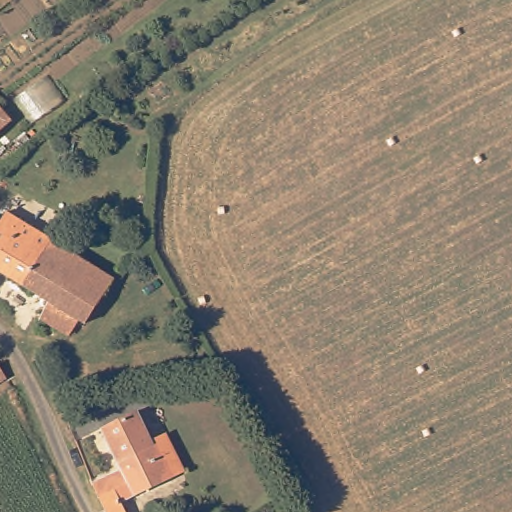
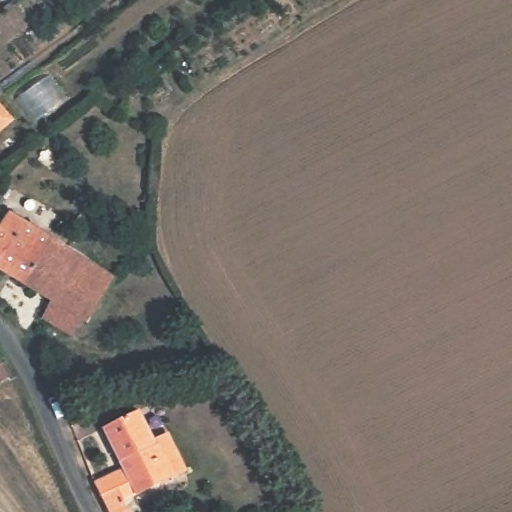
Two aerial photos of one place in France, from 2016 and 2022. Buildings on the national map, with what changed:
unchanged [(23,110),(0,130),(0,83),(23,110)]
unchanged [(11,213),(26,220),(0,255),(0,224),(11,213)]
unchanged [(26,220),(59,240),(27,286),(0,269),(0,255),(26,220)]
unchanged [(52,302),(27,286),(59,240),(82,255),(52,302)]
unchanged [(84,313),(69,334),(42,316),(52,302),(82,255),(117,273),(89,317),(84,313)]
unchanged [(7,376),(0,380),(0,363),(7,376)]
unchanged [(104,428),(140,408),(158,440),(121,461),(104,428)]
unchanged [(125,469),(121,461),(158,440),(167,436),(182,470),(140,492),(137,494),(111,508),(96,483),(125,469)]

